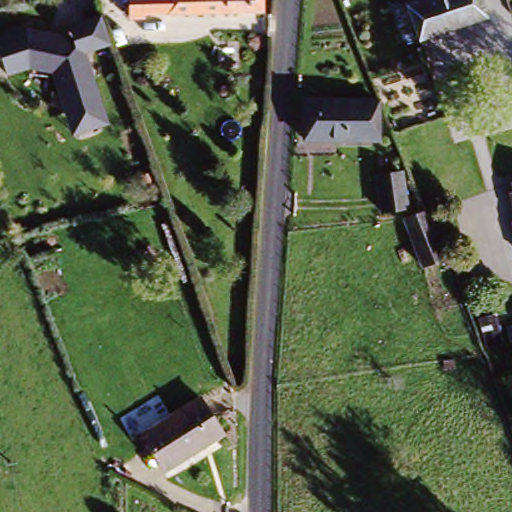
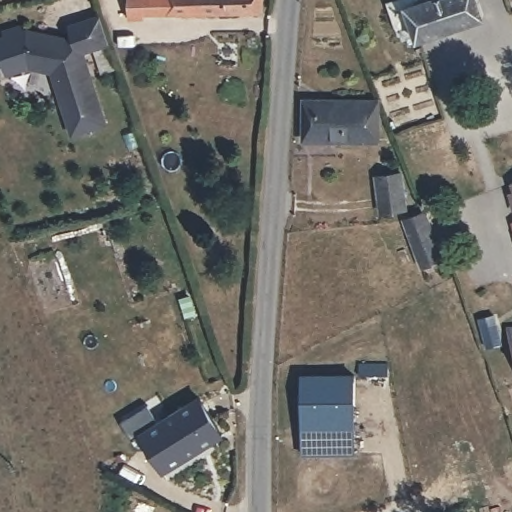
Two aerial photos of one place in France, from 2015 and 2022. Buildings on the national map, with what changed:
unchanged [(146,15),(146,18),(129,18),(129,0),(169,0),(168,16),(146,15)]
unchanged [(168,16),(169,0),(263,0),(262,18),(168,16)]
unchanged [(416,0),(424,0),(425,5),(445,0),(495,0),(499,15),(433,33),(416,38),(406,3),(416,0)]
unchanged [(73,136),(52,75),(30,69),(8,76),(0,54),(0,36),(27,28),(71,34),(68,24),(102,13),(112,45),(87,52),(111,123),(73,136)]
unchanged [(382,140),(308,143),(309,105),(382,101),(382,140)]
unchanged [(382,208),(383,173),(407,172),(406,209),(382,208)]
unchanged [(422,263),(407,224),(428,215),(435,234),(443,255),(422,263)]
new [(391,366),(392,378),(362,378),(362,366),(391,366)]
new [(304,378),(357,378),(358,454),(305,455),(304,378)]
unchanged [(142,432),(202,396),(226,439),(166,474),(142,432)]

